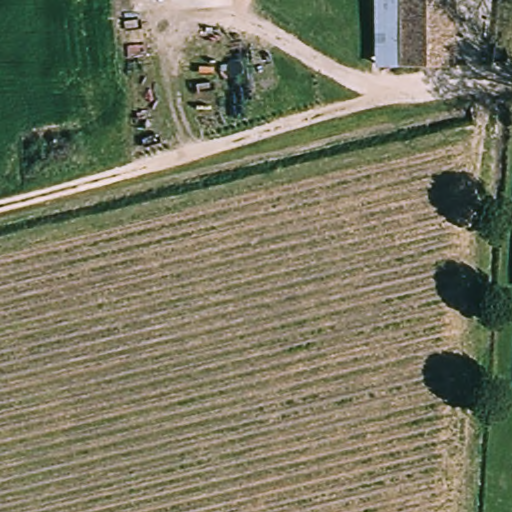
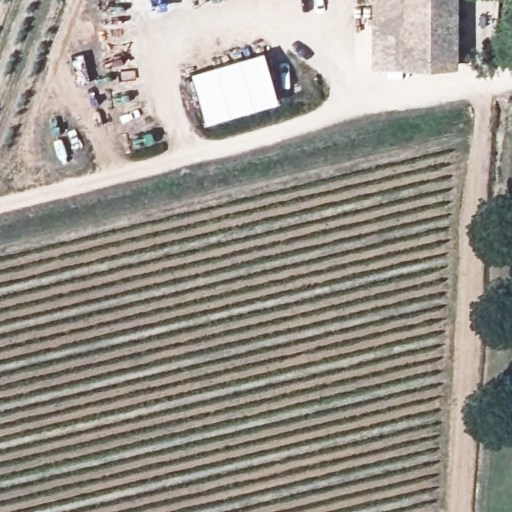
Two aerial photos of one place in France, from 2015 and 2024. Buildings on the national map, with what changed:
unchanged [(366,76),(366,73),(372,0),(397,0),(390,78),(367,76),(366,76)]
unchanged [(390,78),(397,0),(461,0),(457,83),(390,78)]
new [(263,52),(277,102),(206,124),(191,73),(263,52)]

